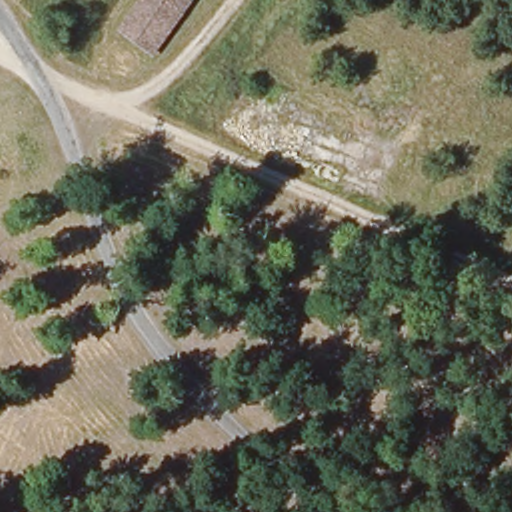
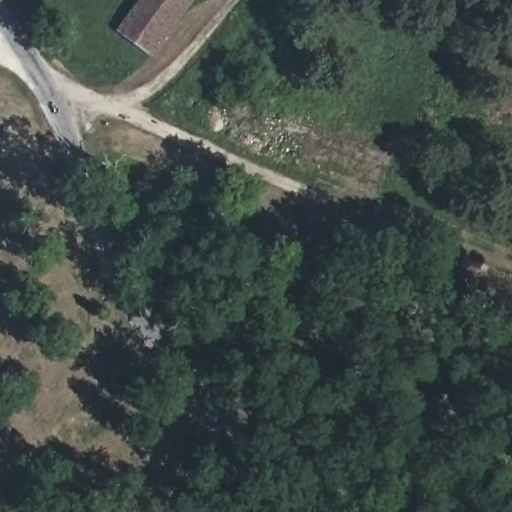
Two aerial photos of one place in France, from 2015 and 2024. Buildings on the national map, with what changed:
unchanged [(182,0),(186,4),(144,56),(114,31),(139,0),(182,0)]

